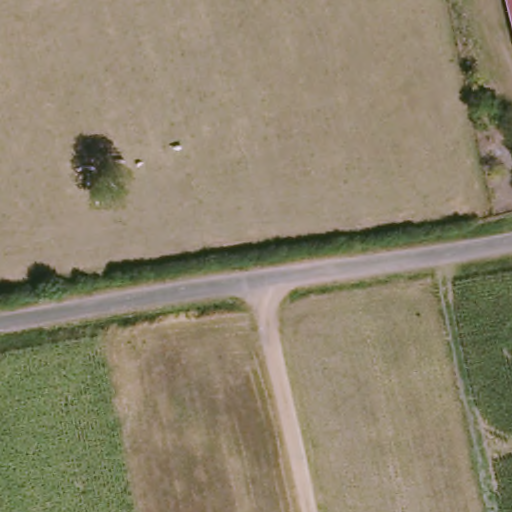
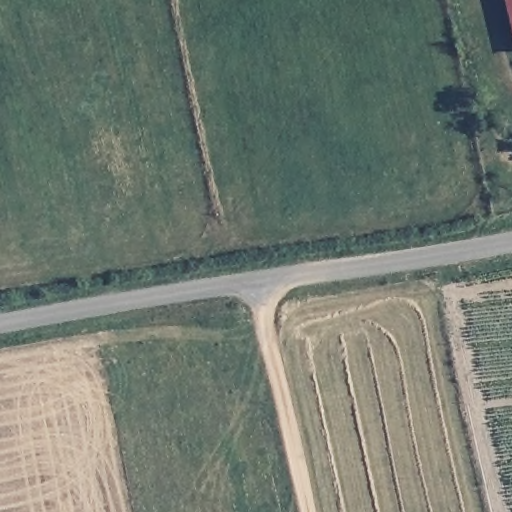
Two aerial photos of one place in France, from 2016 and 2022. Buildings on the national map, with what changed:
unchanged [(512,0),(512,15),(508,0),(512,0)]

